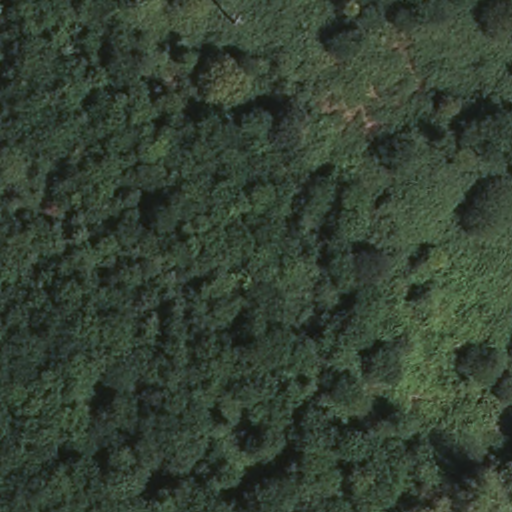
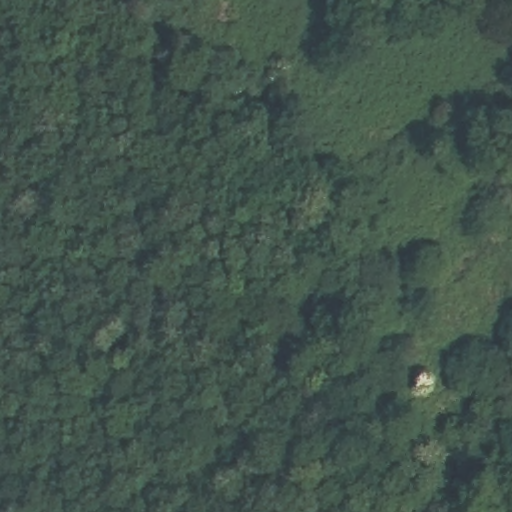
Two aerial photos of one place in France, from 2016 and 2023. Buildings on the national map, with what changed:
unchanged [(192,67),(223,50),(238,77),(207,95),(192,67)]

